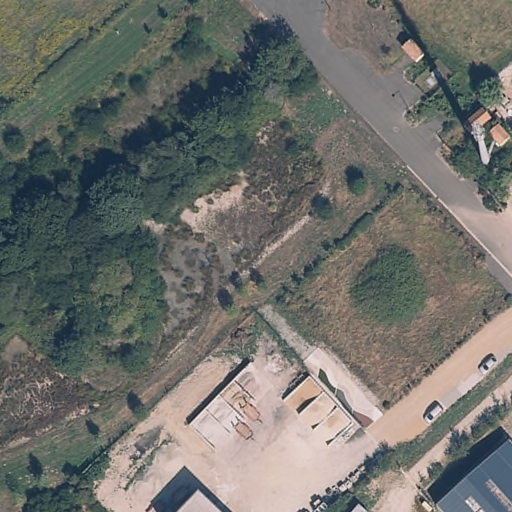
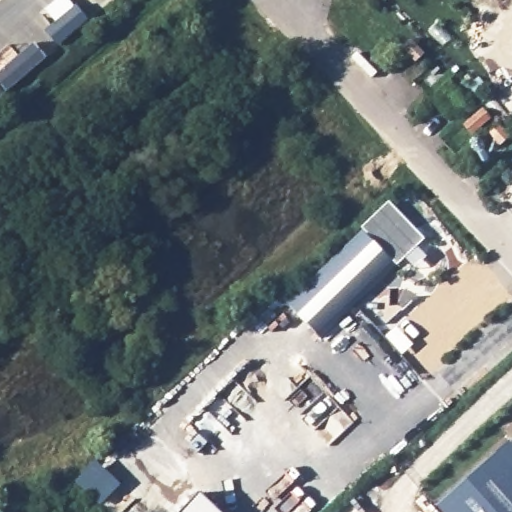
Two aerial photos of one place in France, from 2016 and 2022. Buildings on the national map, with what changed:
unchanged [(477,132),(469,124),(488,107),(496,117),(477,132)]
unchanged [(495,133),(504,124),(512,132),(512,141),(508,145),(495,133)]
new [(364,233),(359,230),(389,202),(425,240),(418,246),(428,256),(415,270),(405,259),(397,266),(394,263),(319,338),(288,305),(364,233)]
unchanged [(512,512),(438,512),(435,508),(506,442),(512,449),(512,512)]
unchanged [(200,495),(218,512),(185,512),(200,495)]

